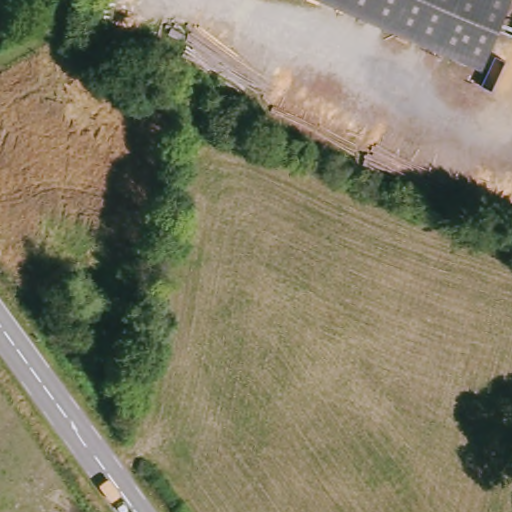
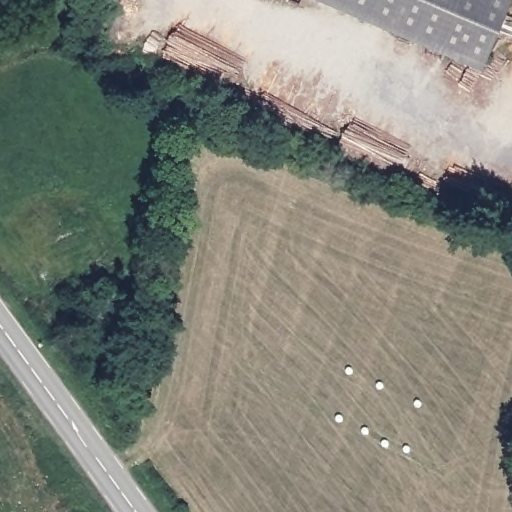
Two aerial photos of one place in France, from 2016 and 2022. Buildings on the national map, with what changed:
unchanged [(487,61),(333,0),(511,0),(488,61),(487,61)]

